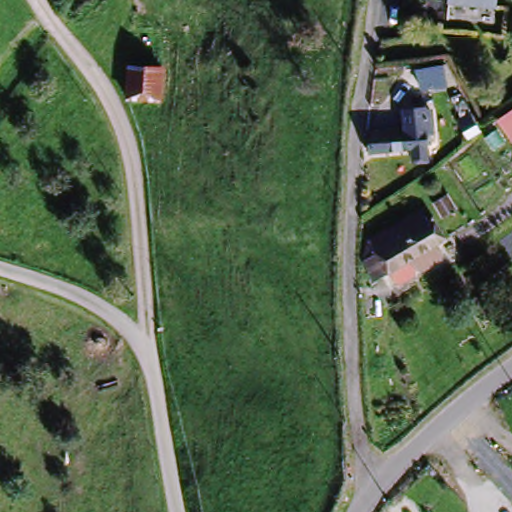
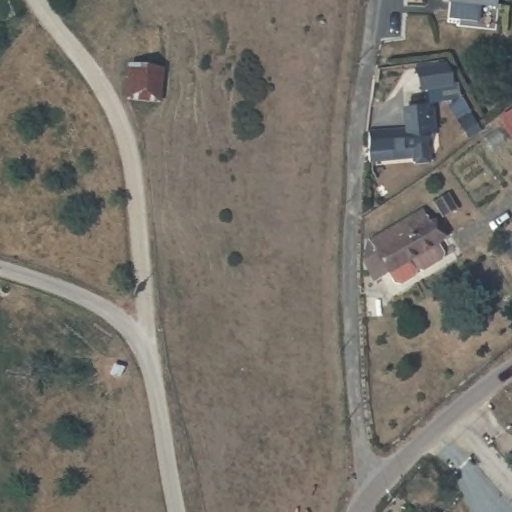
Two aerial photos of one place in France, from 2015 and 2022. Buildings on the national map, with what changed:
unchanged [(443,0),(497,0),(497,13),(443,13),(443,0)]
unchanged [(138,48),(162,50),(154,106),(129,102),(138,48)]
unchanged [(442,84),(417,88),(411,69),(439,64),(442,84)]
unchanged [(408,146),(362,154),(363,137),(402,130),(400,111),(418,107),(422,127),(425,143),(428,158),(415,160),(410,157),(408,146)]
unchanged [(512,143),(510,144),(497,121),(512,111),(512,143)]
unchanged [(365,253),(365,251),(422,213),(441,241),(382,280),(365,253)]

